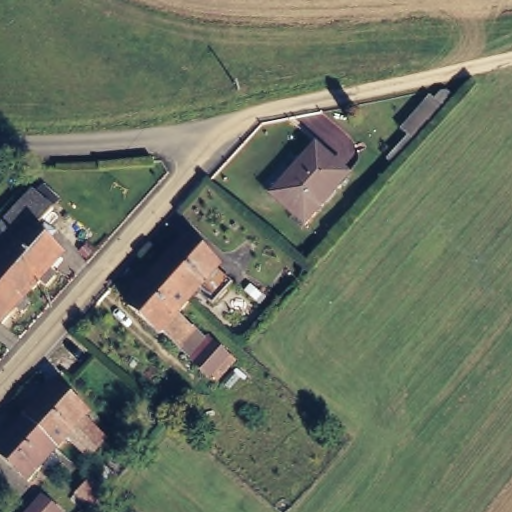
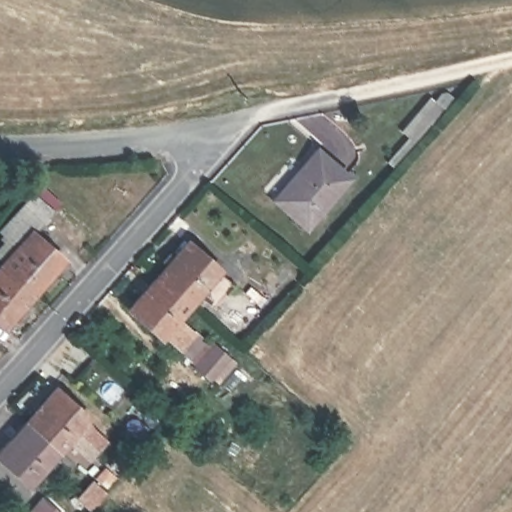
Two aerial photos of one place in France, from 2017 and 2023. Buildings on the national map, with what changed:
unchanged [(310,229),(274,196),(318,148),(353,180),(310,229)]
unchanged [(23,240),(9,227),(44,189),(59,204),(39,227),(67,253),(56,267),(61,273),(53,283),(48,278),(40,286),(8,258),(23,240)]
unchanged [(153,274),(183,241),(213,269),(211,271),(238,294),(220,314),(196,290),(184,303),(153,274)]
unchanged [(33,294),(38,299),(28,310),(23,305),(10,318),(0,309),(0,268),(8,258),(40,286),(33,294)]
unchanged [(172,316),(186,329),(190,328),(201,339),(186,357),(158,332),(156,334),(126,307),(153,274),(184,303),(172,316)]
unchanged [(193,364),(211,344),(223,356),(205,376),(193,364)]
unchanged [(28,423),(56,390),(88,418),(86,422),(106,442),(92,458),(70,439),(59,451),(28,423)]
unchanged [(0,457),(0,454),(28,423),(59,451),(30,484),(0,457)]
unchanged [(49,502),(62,512),(40,512),(49,502)]

